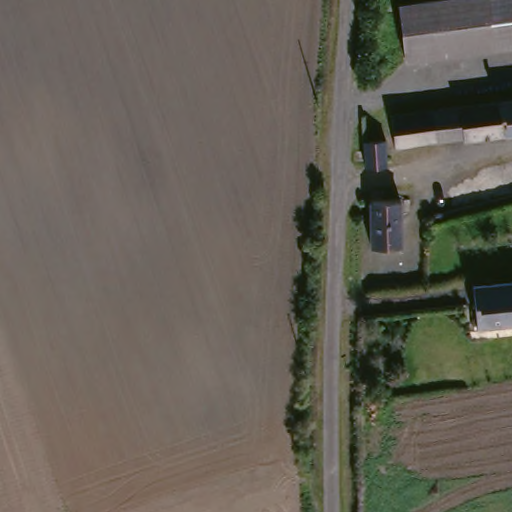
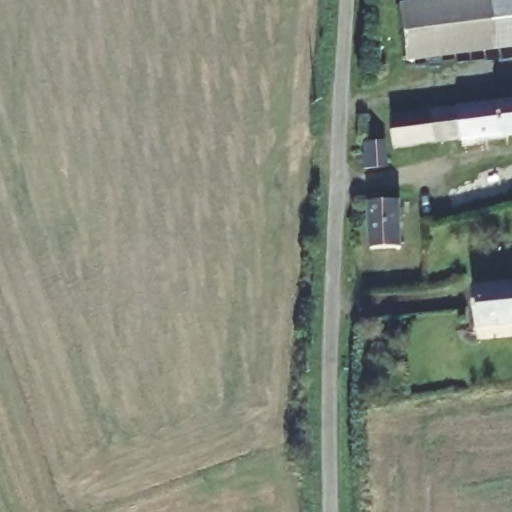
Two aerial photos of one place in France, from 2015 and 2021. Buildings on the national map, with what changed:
unchanged [(411,54),(406,14),(404,0),(512,0),(512,41),(411,54)]
unchanged [(512,98),(512,132),(446,140),(443,107),(510,98),(512,98)]
unchanged [(443,107),(446,140),(405,144),(401,111),(443,107)]
unchanged [(395,134),(397,164),(375,165),(371,137),(395,134)]
unchanged [(409,199),(408,229),(408,245),(380,244),(381,199),(409,199)]
unchanged [(512,280),(512,321),(485,325),(481,284),(512,280)]

